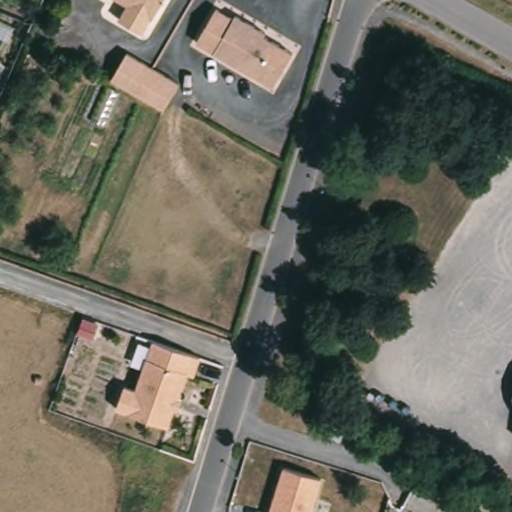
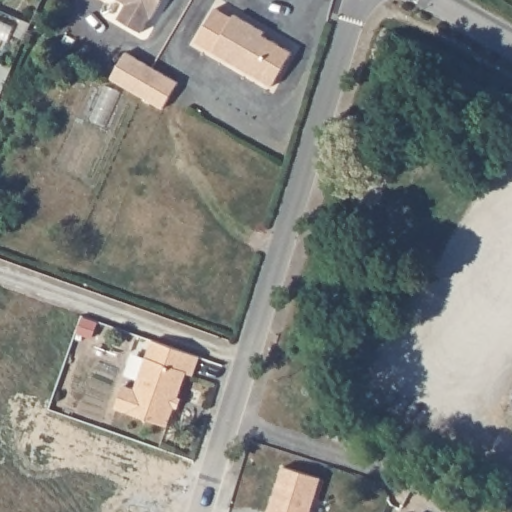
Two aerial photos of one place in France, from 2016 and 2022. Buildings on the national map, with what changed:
unchanged [(122,0),(167,0),(156,18),(151,15),(141,32),(123,21),(120,20),(129,4),(122,0)]
unchanged [(217,7),(236,18),(240,12),(268,28),(264,34),(295,51),(276,84),(198,40),(217,7)]
unchanged [(113,78),(129,50),(171,75),(181,82),(162,110),(159,108),(113,78)]
unchanged [(198,360),(192,378),(186,376),(168,429),(116,411),(124,387),(135,391),(152,342),(198,360)]
unchanged [(512,389),(512,407),(508,398),(512,389)]
unchanged [(314,478),(304,512),(263,512),(277,467),(314,478)]

